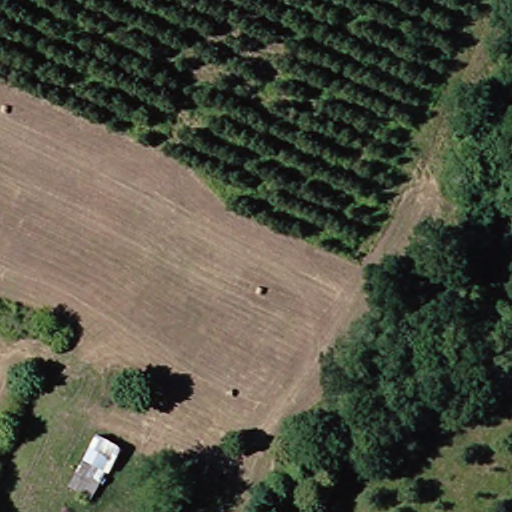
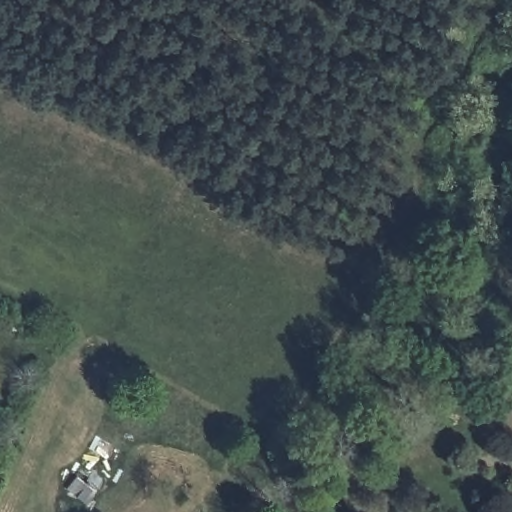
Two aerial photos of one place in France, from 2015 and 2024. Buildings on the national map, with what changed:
unchanged [(94,483),(69,470),(83,442),(106,456),(94,483)]

